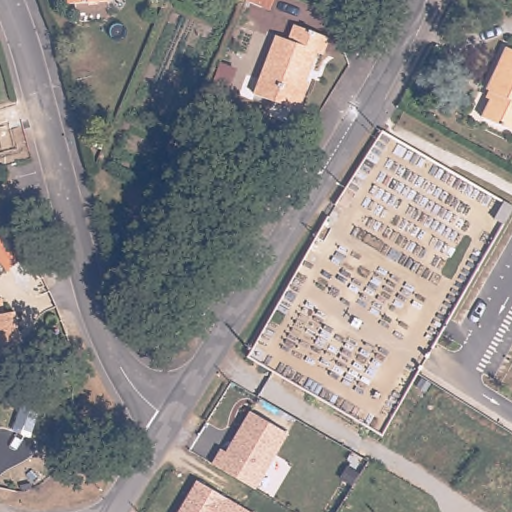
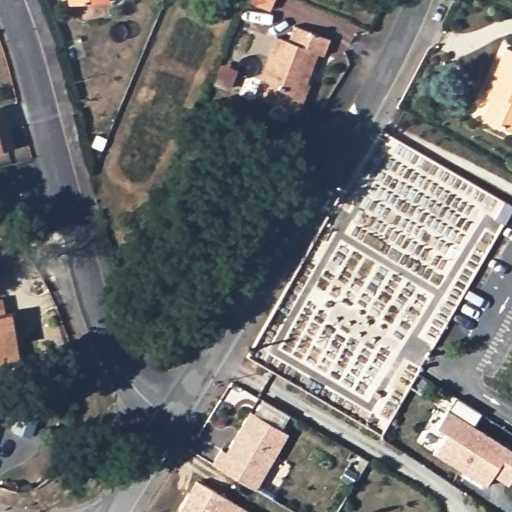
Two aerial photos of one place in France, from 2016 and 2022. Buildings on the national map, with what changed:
unchanged [(109,0),(109,2),(67,4),(67,0),(109,0)]
unchanged [(274,0),(270,11),(243,0),(274,0)]
unchanged [(252,89),(275,32),(286,37),(293,20),(330,35),(323,51),(319,50),(297,107),(252,89)]
unchanged [(488,98),(484,96),(506,47),(512,50),(512,130),(480,116),(488,98)]
new [(0,105),(5,122),(10,147),(0,150),(0,105)]
unchanged [(512,204),(512,211),(504,225),(493,219),(505,199),(512,204)]
unchanged [(32,229),(36,243),(25,245),(20,229),(31,227),(32,229)]
unchanged [(15,252),(4,263),(0,260),(0,237),(15,252)]
unchanged [(14,348),(16,367),(0,369),(0,317),(12,316),(16,333),(18,347),(14,348)]
new [(492,474),(485,485),(466,472),(470,466),(464,462),(460,468),(433,451),(446,432),(436,426),(456,396),(482,412),(473,425),(509,448),(512,450),(512,480),(508,485),(492,474)]
unchanged [(290,435),(257,491),(212,465),(217,450),(224,451),(247,410),(290,435)]
unchanged [(252,512),(178,512),(195,482),(252,512)]

